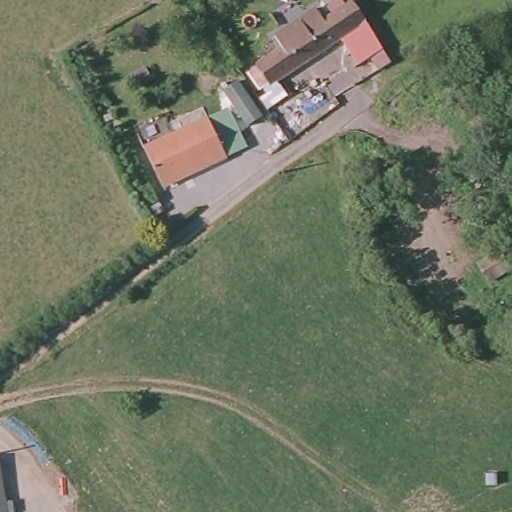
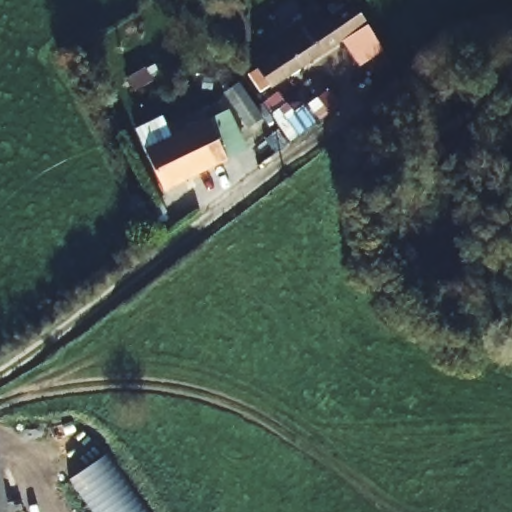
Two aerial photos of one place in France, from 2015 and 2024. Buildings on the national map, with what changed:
unchanged [(281,47),(273,36),(316,9),(324,20),(353,0),(354,0),(388,59),(391,64),(374,72),(351,34),(272,86),(257,64),(281,47)]
unchanged [(164,64),(169,74),(151,85),(144,74),(164,64)]
unchanged [(264,121),(250,131),(224,93),(239,83),(264,121)]
unchanged [(208,117),(227,154),(161,187),(143,150),(208,117)]
unchanged [(499,256),(510,273),(488,288),(476,269),(499,256)]
new [(150,512),(94,512),(71,475),(110,458),(150,512)]
unchanged [(4,512),(0,512),(0,481),(4,512)]

